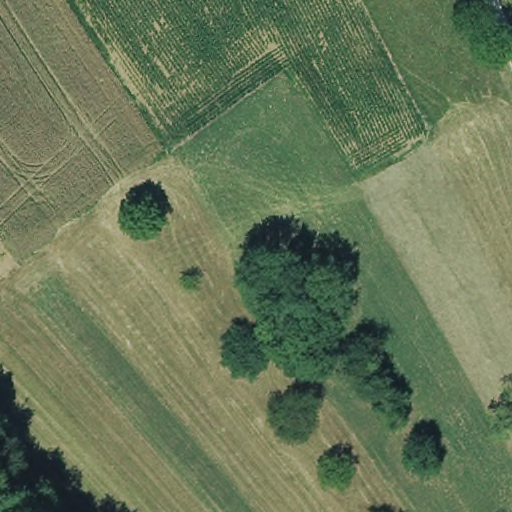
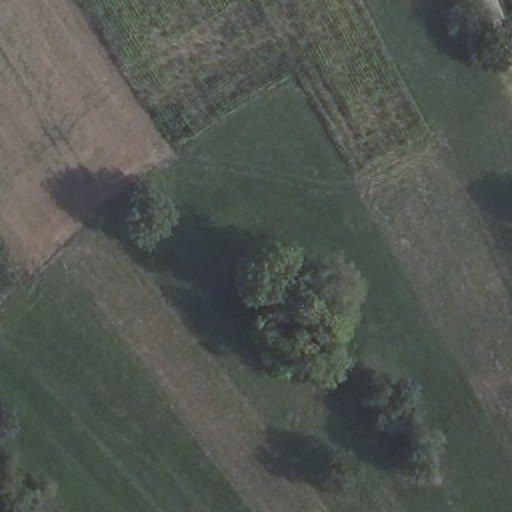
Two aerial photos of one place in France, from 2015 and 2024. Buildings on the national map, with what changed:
[]

